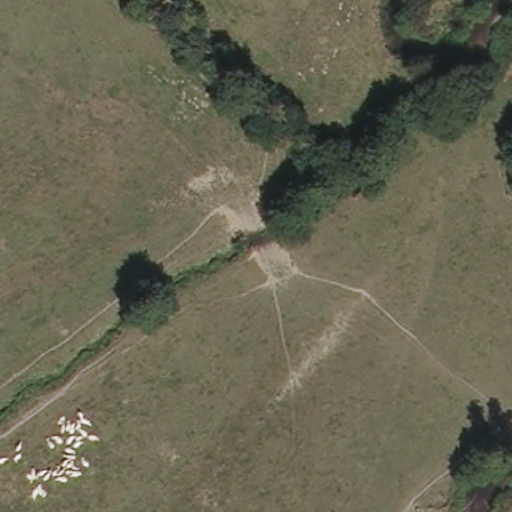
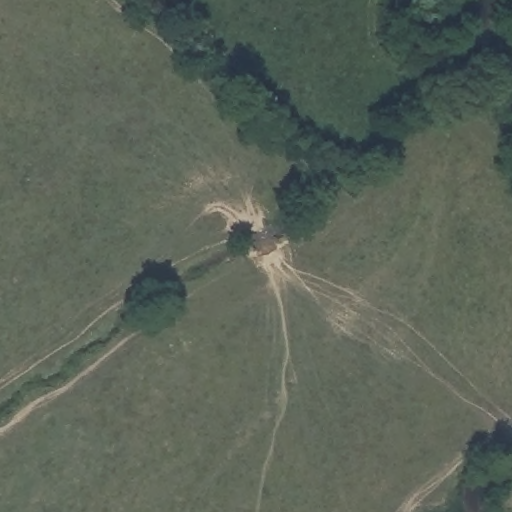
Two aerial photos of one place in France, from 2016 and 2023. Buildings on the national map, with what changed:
[]

